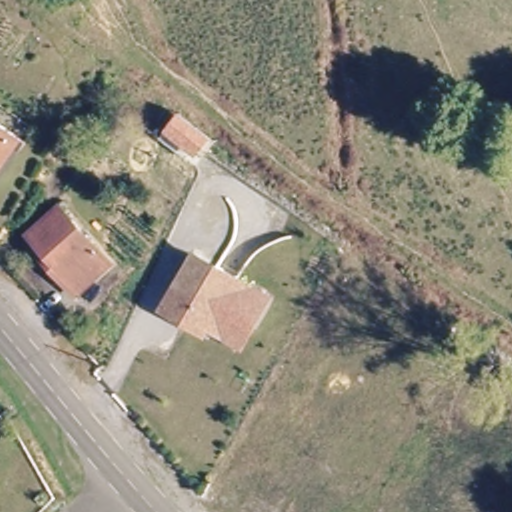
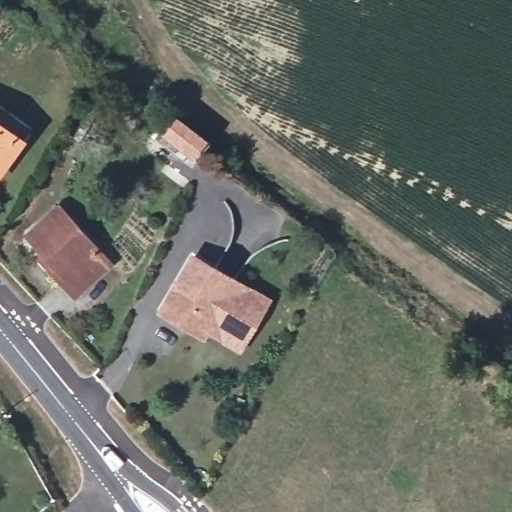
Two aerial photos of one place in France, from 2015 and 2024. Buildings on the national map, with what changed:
unchanged [(207,141),(192,160),(159,133),(175,113),(207,141)]
unchanged [(0,164),(0,126),(19,141),(0,164)]
unchanged [(39,270),(45,265),(27,241),(65,211),(104,263),(66,299),(39,270)]
unchanged [(205,332),(202,337),(160,313),(191,259),(265,300),(248,332),(237,351),(205,332)]

